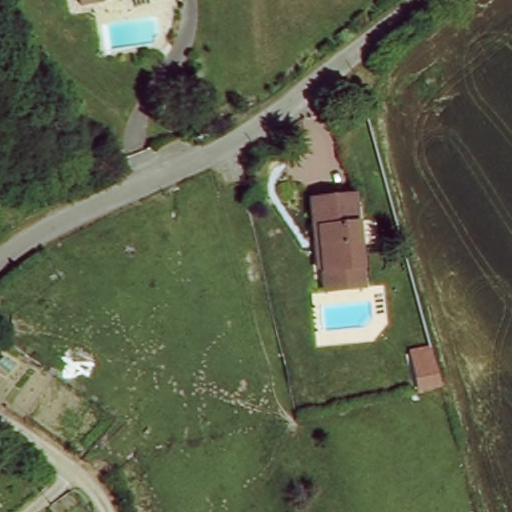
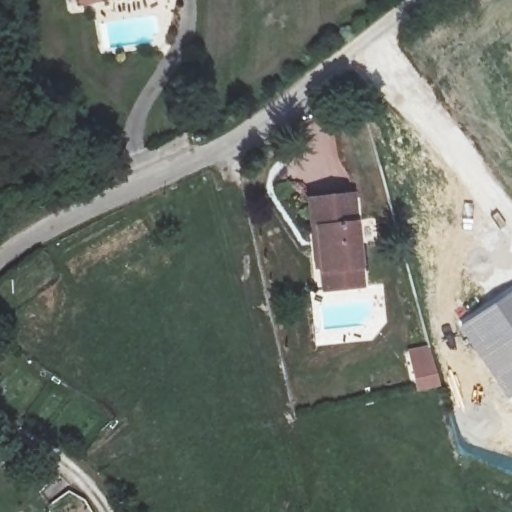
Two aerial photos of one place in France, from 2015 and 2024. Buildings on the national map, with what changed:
unchanged [(314,291),(311,273),(304,200),(348,195),(356,268),(358,287),(314,291)]
new [(512,286),(512,409),(506,400),(457,324),(512,286)]
new [(429,344),(439,387),(415,393),(406,349),(429,344)]

